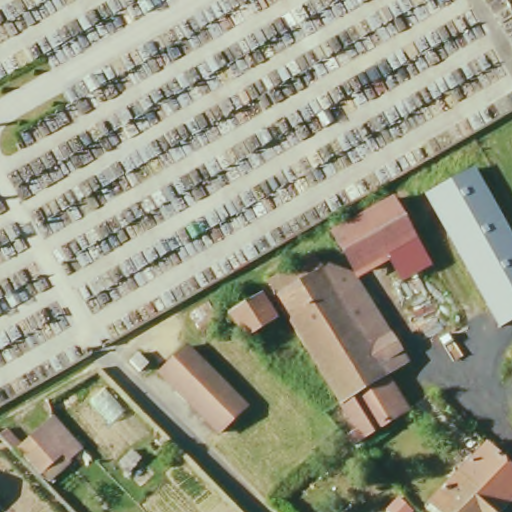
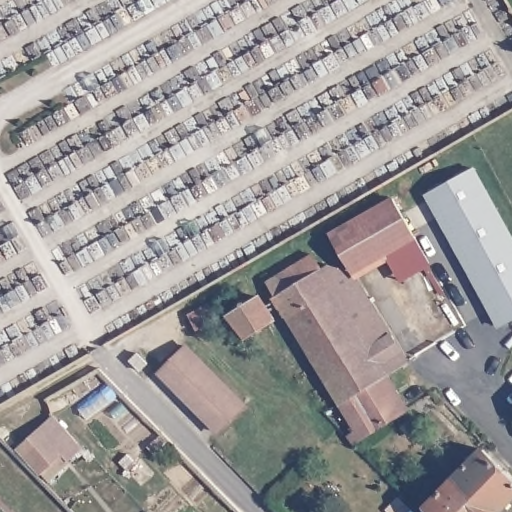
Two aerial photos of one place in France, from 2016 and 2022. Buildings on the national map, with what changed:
unchanged [(430,194),(476,166),(512,232),(512,320),(500,327),(430,194)]
unchanged [(415,241),(350,275),(330,240),(395,202),(415,241)]
unchanged [(341,408),(277,301),(267,285),(302,265),(311,281),(328,271),(354,279),(407,366),(388,378),(341,408)]
unchanged [(273,322),(246,338),(226,319),(259,299),(273,322)]
unchanged [(218,333),(199,342),(189,318),(208,307),(218,333)]
unchanged [(219,434),(211,425),(160,373),(187,348),(238,399),(246,407),(219,434)]
unchanged [(141,369),(136,364),(130,359),(138,351),(143,357),(148,362),(141,369)]
unchanged [(397,422),(355,446),(350,436),(357,433),(341,408),(388,378),(410,414),(397,422)]
unchanged [(25,453),(19,459),(2,442),(9,435),(26,452),(56,422),(78,445),(47,475),(25,453)]
unchanged [(494,512),(457,476),(485,448),(512,475),(512,501),(501,512),(494,512)]
unchanged [(457,476),(494,512),(437,512),(430,505),(457,476)]

